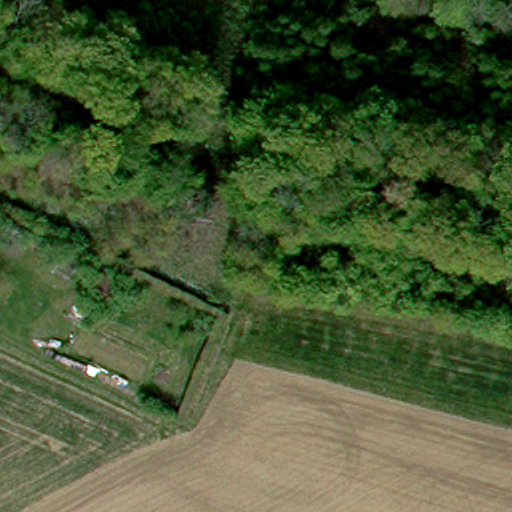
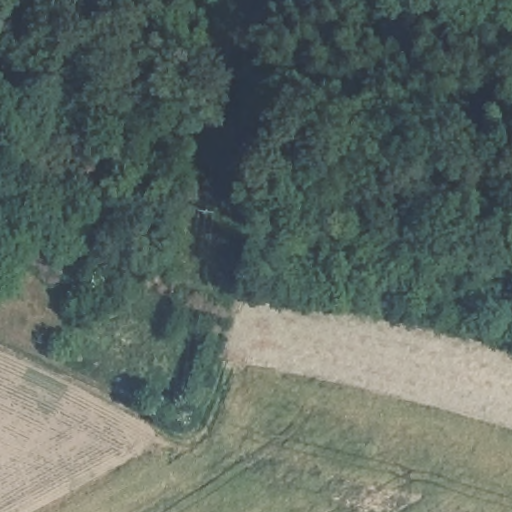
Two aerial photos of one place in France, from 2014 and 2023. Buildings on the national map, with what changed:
[]

